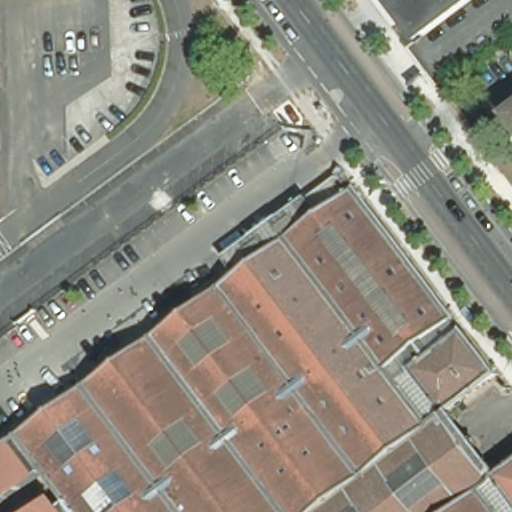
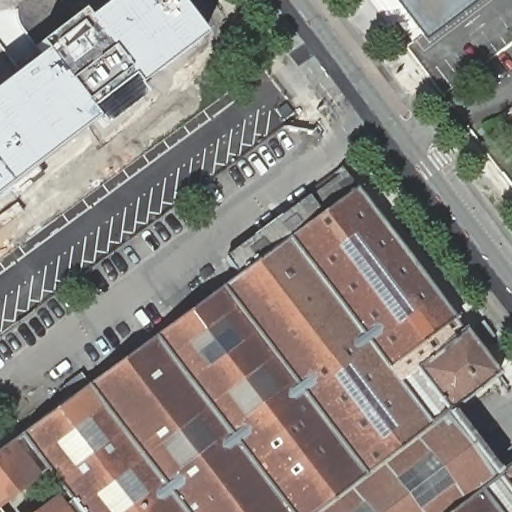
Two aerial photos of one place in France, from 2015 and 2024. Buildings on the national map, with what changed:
new [(142,97),(101,131),(93,121),(0,192),(0,86),(41,54),(35,47),(78,13),(84,22),(113,0),(173,0),(200,37),(135,87),(142,97)]
demolished [(84,163),(22,167),(21,148),(53,145),(52,137),(21,138),(17,0),(78,0),(84,163)]
unchanged [(422,31),(399,0),(463,0),(422,31)]
demolished [(93,11),(153,10),(155,77),(94,78),(93,11)]
unchanged [(343,177),(356,193),(357,195),(374,216),(377,220),(431,292),(456,324),(465,335),(486,363),(498,379),(484,390),(450,416),(451,417),(459,428),(469,441),(479,454),(489,468),(499,479),(512,469),(512,512),(0,512),(0,456),(3,454),(0,450),(0,440),(28,420),(35,430),(222,293),(219,289),(235,277),(226,265),(337,183),(334,178),(340,173),(341,172),(344,176),(343,177)]

